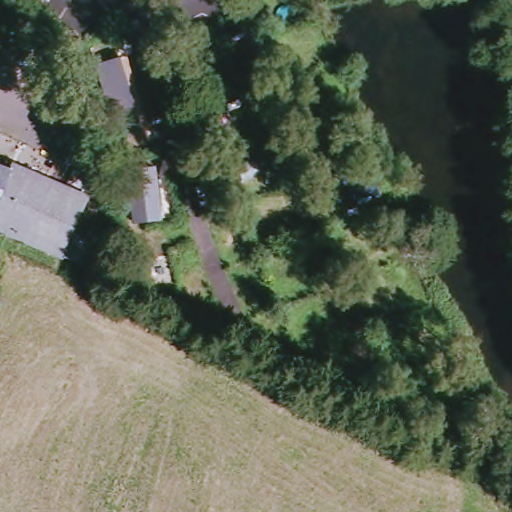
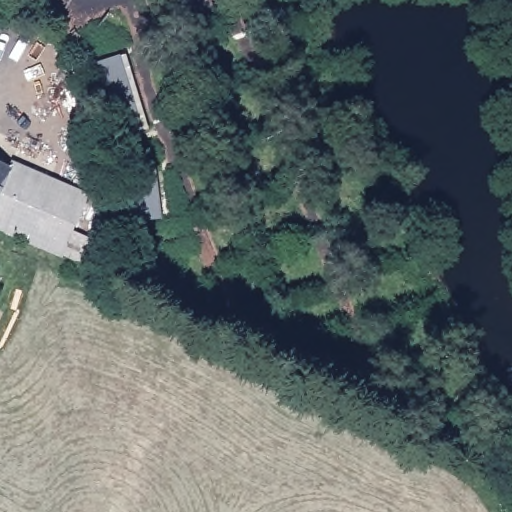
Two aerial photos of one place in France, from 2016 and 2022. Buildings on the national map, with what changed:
unchanged [(49,176),(95,196),(67,257),(0,230),(0,162),(46,181),(49,176)]

